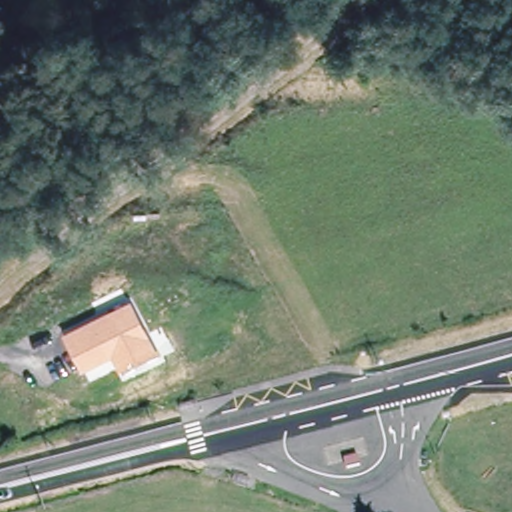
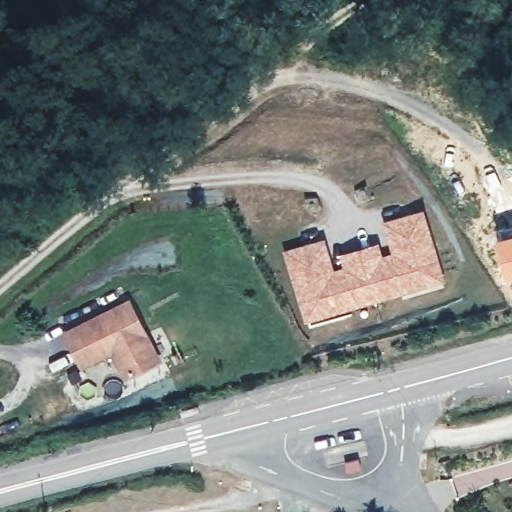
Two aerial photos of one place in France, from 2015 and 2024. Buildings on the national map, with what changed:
new [(334,270),(344,267),(340,253),(380,241),(384,255),(392,252),(382,220),(425,207),(447,282),(306,323),(283,250),(325,238),(334,270)]
new [(512,277),(507,278),(495,239),(512,235),(512,277)]
unchanged [(129,296),(163,360),(124,380),(112,353),(81,369),(61,330),(129,296)]

